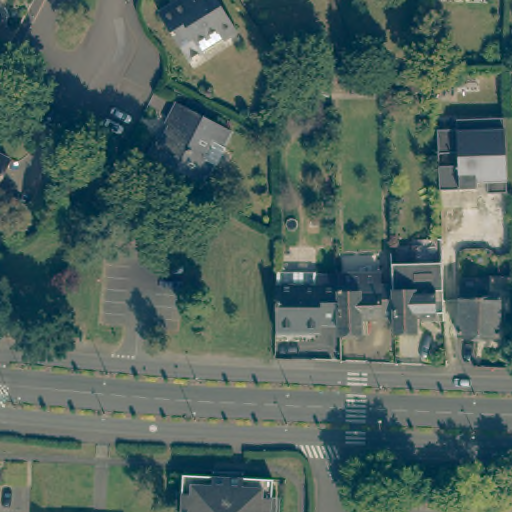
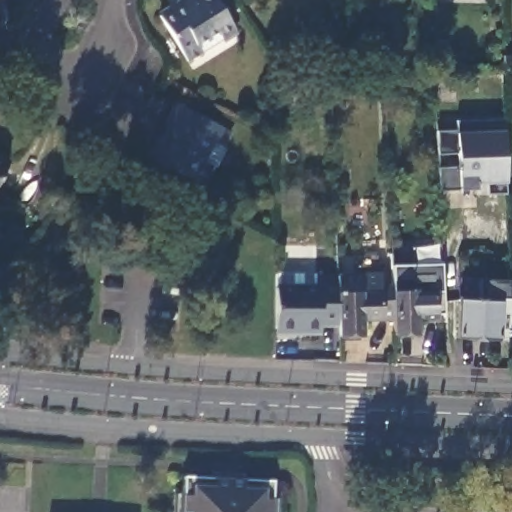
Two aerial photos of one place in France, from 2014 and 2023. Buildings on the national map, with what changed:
unchanged [(231,26),(217,35),(211,27),(192,39),(197,47),(182,56),(155,11),(173,0),(213,0),(231,26)]
unchanged [(377,80),(377,95),(357,95),(356,81),(377,80)]
unchanged [(478,80),(477,92),(456,92),(455,101),(435,101),(435,100),(433,80),(478,80)]
unchanged [(215,167),(212,165),(201,184),(148,156),(159,137),(164,140),(170,127),(166,124),(176,105),(228,132),(220,146),(224,149),(215,167)]
unchanged [(438,192),(436,132),(456,131),(455,121),(502,120),(506,195),(486,195),(486,190),(476,191),(438,192)]
unchanged [(0,171),(0,152),(7,156),(0,171)]
unchanged [(388,341),(388,340),(387,325),(387,298),(387,292),(386,272),(408,271),(407,253),(417,252),(417,246),(436,246),(437,270),(437,289),(438,320),(430,321),(430,324),(410,325),(411,340),(388,341)]
unchanged [(271,340),(271,332),(271,278),(311,278),(311,280),(331,280),(332,328),(332,330),(314,330),(314,337),(311,340),(271,340)]
unchanged [(356,341),(333,342),(333,340),(332,330),(332,328),(331,280),(375,280),(375,292),(387,292),(387,298),(387,325),(355,326),(356,341)]
unchanged [(505,312),(493,312),(492,340),(453,338),(455,299),(482,300),(482,280),(503,280),(505,312)]
unchanged [(270,512),(181,512),(183,478),(272,481),(270,512)]

